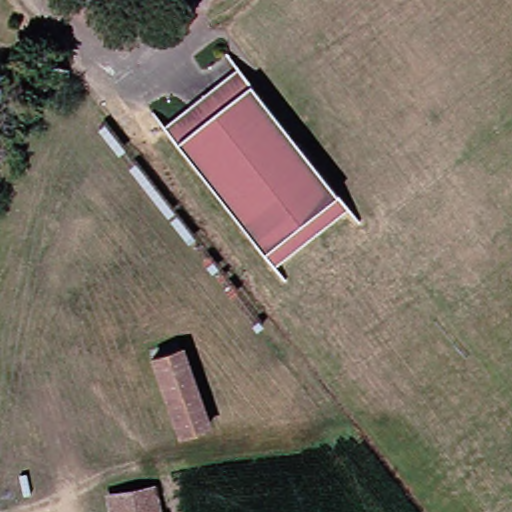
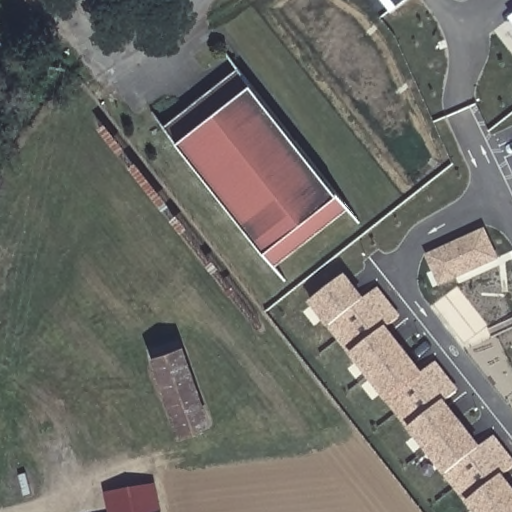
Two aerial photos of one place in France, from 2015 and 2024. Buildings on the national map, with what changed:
new [(391,13),(380,0),(408,0),(391,13)]
new [(508,17),(512,14),(512,21),(508,17)]
unchanged [(230,64),(344,204),(266,267),(154,126),(230,64)]
new [(498,257),(439,286),(425,254),(485,229),(498,257)]
new [(468,500),(447,473),(443,476),(406,429),(410,426),(389,399),(385,402),(347,355),(352,352),(331,325),(327,328),(307,304),(346,274),(365,298),(378,288),(395,309),(381,320),(423,373),(432,366),(437,372),(442,368),(457,388),(444,399),(481,446),(490,439),(495,446),(500,442),(512,457),(507,462),(511,467),(502,473),(512,486),(512,512),(472,512),(465,503),(468,500)]
unchanged [(146,356),(175,346),(201,422),(173,432),(146,356)]
unchanged [(156,512),(109,512),(107,493),(152,486),(156,512)]

